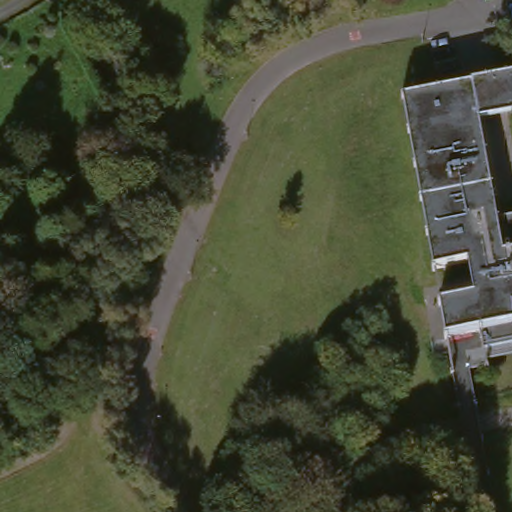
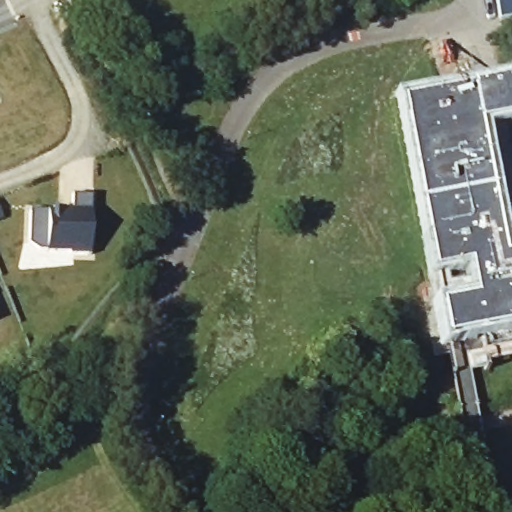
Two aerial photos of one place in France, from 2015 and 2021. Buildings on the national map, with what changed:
unchanged [(468,373),(489,497),(492,512),(468,512),(441,346),(435,306),(468,300),(461,265),(428,271),(397,103),(512,81),(512,118),(477,124),(494,221),(512,218),(512,365),(468,373)]
new [(31,209),(72,210),(73,194),(93,195),(89,256),(69,255),(70,251),(40,250),(29,242),(31,209)]
new [(0,218),(0,207),(4,216),(0,218)]

